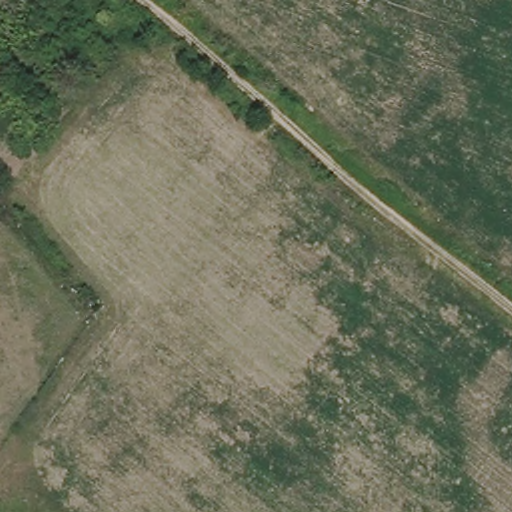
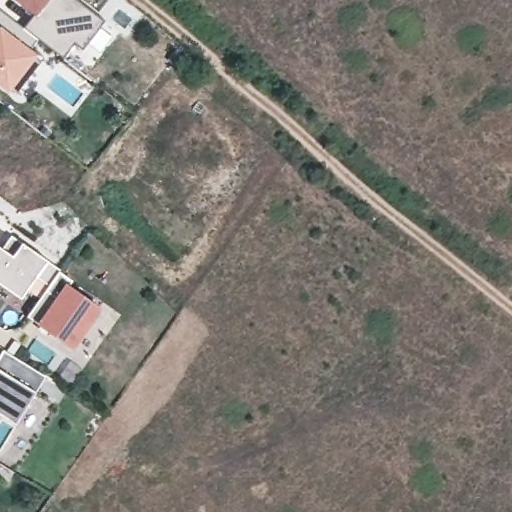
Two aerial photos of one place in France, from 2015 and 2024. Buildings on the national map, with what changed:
new [(107,26),(83,55),(75,49),(64,63),(39,43),(25,32),(36,17),(14,0),(74,0),(107,26)]
new [(39,43),(29,56),(42,66),(17,99),(0,86),(0,12),(25,32),(39,43)]
new [(13,239),(25,246),(47,264),(60,274),(42,300),(28,290),(23,297),(0,282),(0,248),(5,251),(13,239)]
new [(60,274),(72,283),(69,288),(100,310),(72,349),(28,319),(60,274)]
new [(37,391),(32,401),(47,410),(32,433),(17,423),(0,413),(0,358),(5,350),(46,378),(37,391)]

